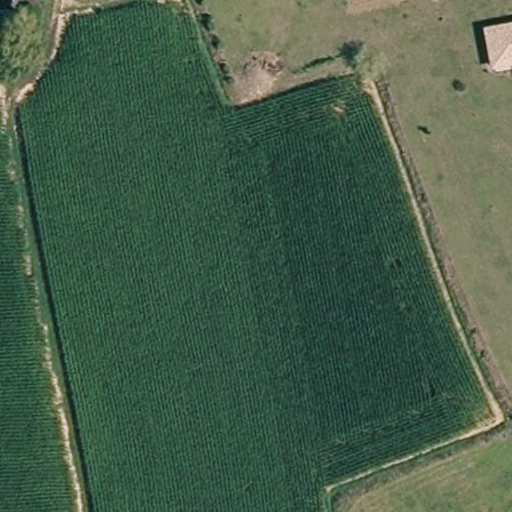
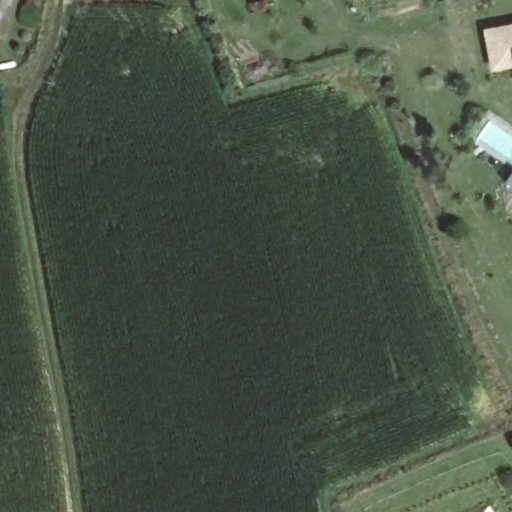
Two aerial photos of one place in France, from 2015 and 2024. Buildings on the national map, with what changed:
unchanged [(0,43),(0,0),(2,0),(0,43)]
unchanged [(487,28),(512,23),(512,61),(493,65),(487,28)]

